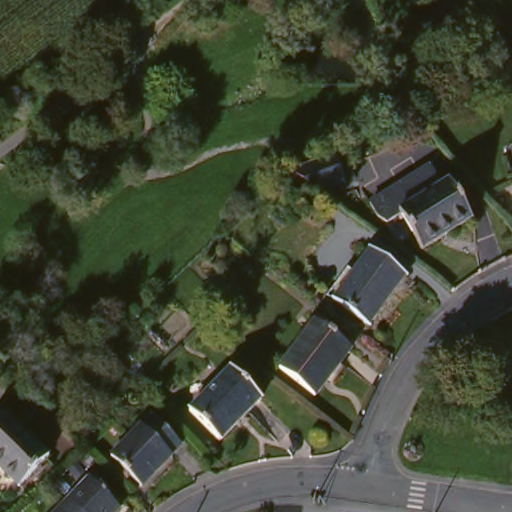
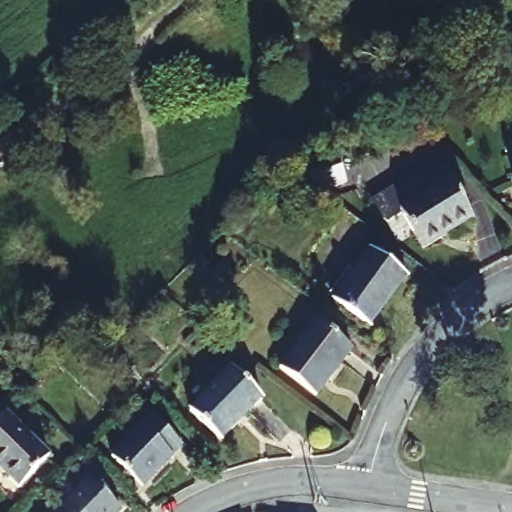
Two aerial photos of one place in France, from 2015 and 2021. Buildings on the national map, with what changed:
unchanged [(442,184),(449,180),(473,218),(423,248),(402,214),(387,222),(377,217),(368,203),(397,185),(430,166),(442,184)]
unchanged [(512,192),(508,178),(512,177),(512,192)]
unchanged [(402,280),(365,329),(329,302),(360,261),(367,253),(402,280)]
unchanged [(349,346),(312,393),(277,366),(314,319),(349,346)]
unchanged [(256,399),(214,441),(184,409),(226,369),(256,399)]
unchanged [(47,456),(17,487),(0,471),(0,420),(5,415),(47,456)]
unchanged [(109,456),(125,440),(138,426),(140,427),(150,417),(177,445),(166,455),(167,456),(154,471),(138,485),(109,456)]
unchanged [(101,512),(58,512),(80,490),(86,497),(101,512)]

